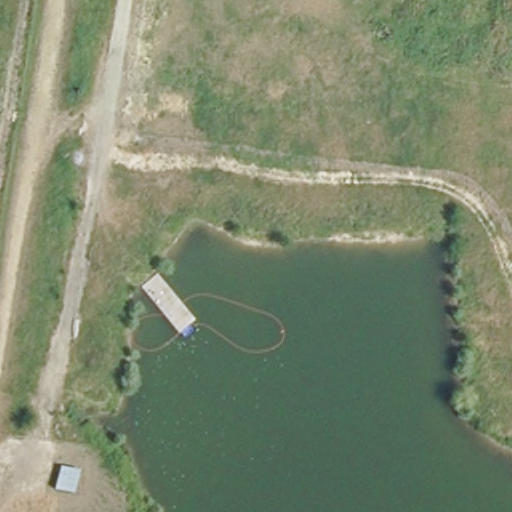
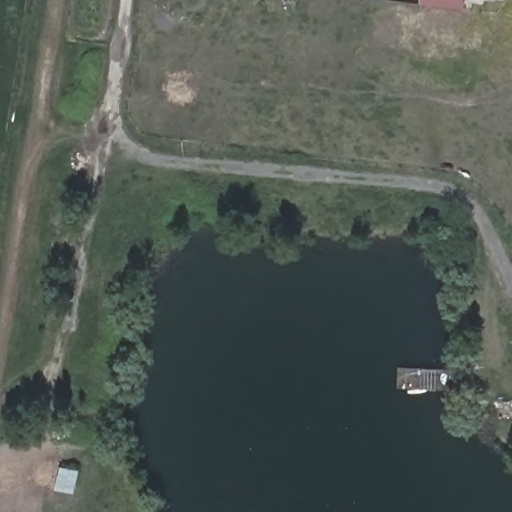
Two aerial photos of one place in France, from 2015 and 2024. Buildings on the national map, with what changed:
new [(418,0),(462,0),(462,7),(418,5),(418,0)]

